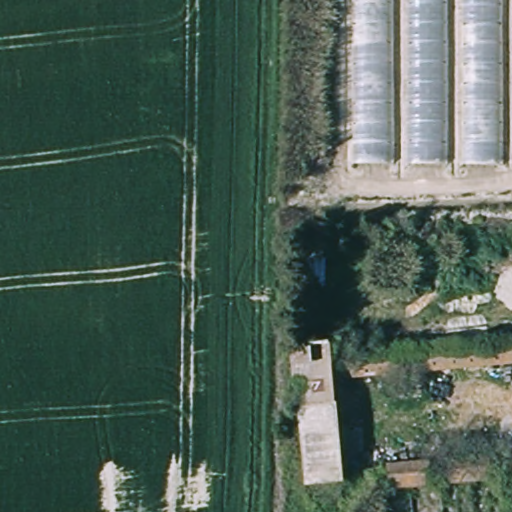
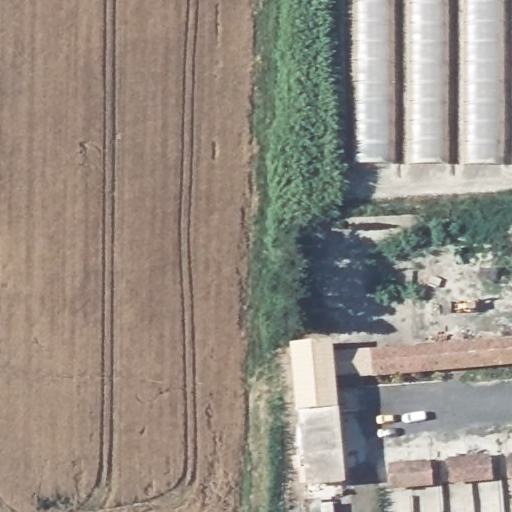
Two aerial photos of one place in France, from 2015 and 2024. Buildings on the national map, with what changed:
unchanged [(362,0),(512,0),(512,160),(363,166),(362,0)]
unchanged [(328,346),(329,357),(512,340),(512,369),(333,384),(341,487),(304,489),(299,416),(293,416),(289,348),(328,346)]
unchanged [(512,456),(512,481),(509,482),(508,457),(512,456)]
unchanged [(492,459),(494,484),(452,486),(450,462),(492,459)]
unchanged [(432,464),(434,489),(392,492),(389,468),(432,464)]

